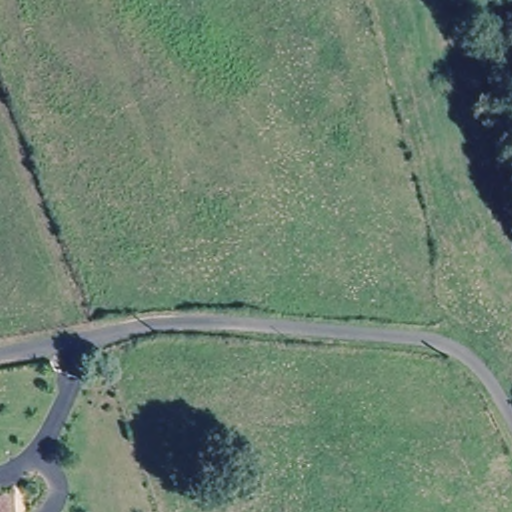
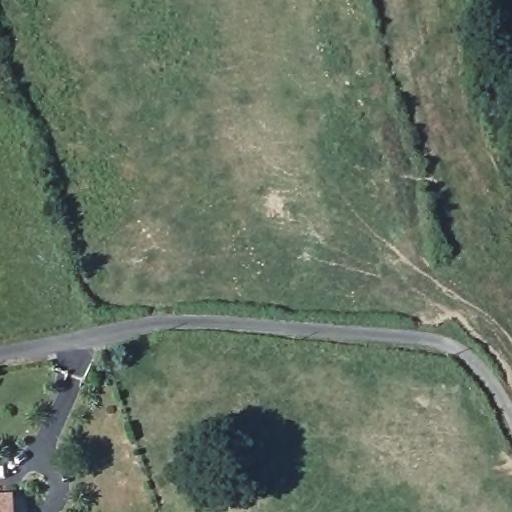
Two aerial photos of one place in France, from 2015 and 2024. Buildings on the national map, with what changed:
unchanged [(6,512),(0,512),(0,503),(5,503),(6,512)]

